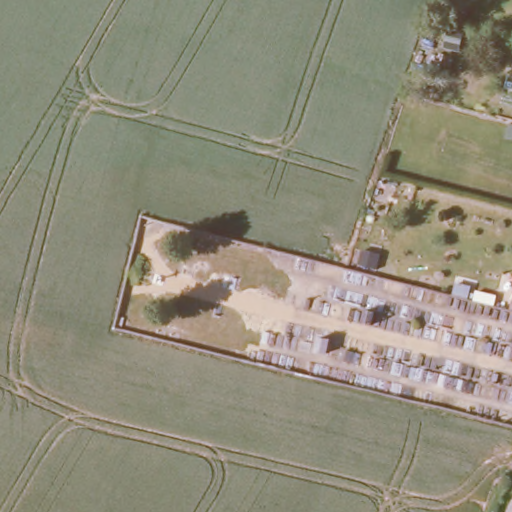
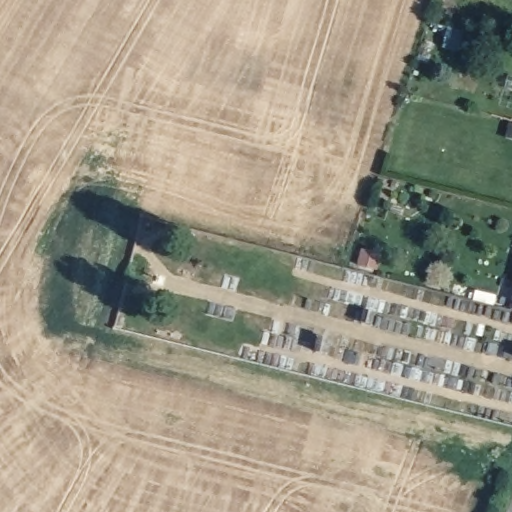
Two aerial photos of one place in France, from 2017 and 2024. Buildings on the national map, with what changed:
unchanged [(512,142),(505,140),(508,126),(512,127),(512,142)]
unchanged [(472,302),(475,292),(495,297),(492,307),(472,302)]
unchanged [(512,310),(512,312),(511,312),(512,310)]

